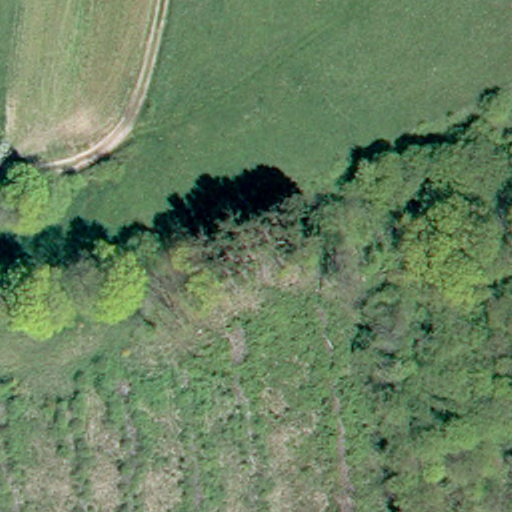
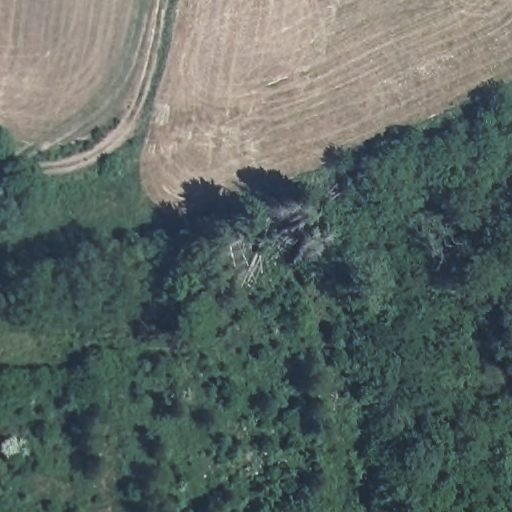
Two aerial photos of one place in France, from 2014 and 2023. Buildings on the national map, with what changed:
[]

